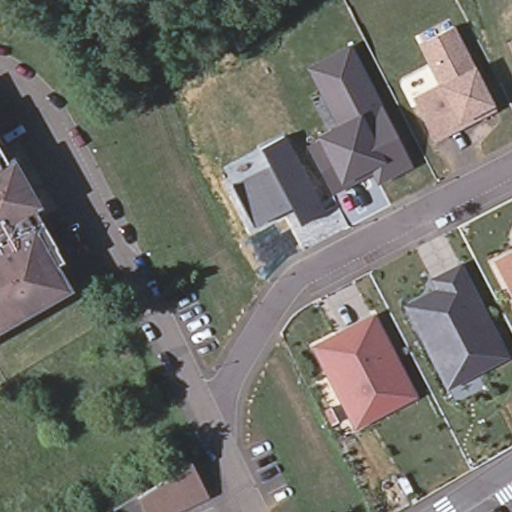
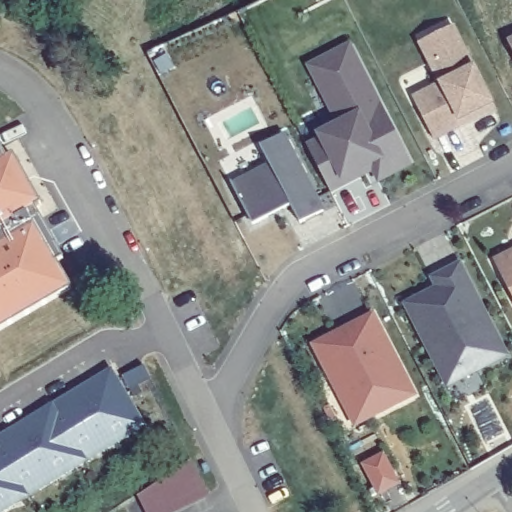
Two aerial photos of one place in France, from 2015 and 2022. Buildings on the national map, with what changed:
unchanged [(462,125),(434,140),(416,105),(412,97),(439,84),(418,43),(426,40),(452,25),(492,103),(495,109),(462,125)]
unchanged [(507,43),(512,41),(512,52),(507,43)]
unchanged [(311,154),(307,147),(321,140),(319,136),(339,125),(342,115),(317,68),(351,51),(407,160),(381,174),(375,162),(356,171),(359,177),(330,192),(311,154)]
unchanged [(232,185),(270,165),(260,146),(283,135),(322,211),(300,224),(291,205),(252,225),(232,185)]
unchanged [(10,153),(32,195),(0,215),(0,152),(3,157),(10,153)]
unchanged [(37,203),(31,207),(59,258),(52,262),(66,288),(0,324),(0,215),(32,195),(37,203)]
unchanged [(494,257),(507,251),(512,248),(512,293),(494,257)]
unchanged [(410,305),(421,299),(427,301),(440,295),(432,279),(460,265),(481,305),(476,308),(482,320),(487,318),(507,355),(460,380),(447,356),(442,360),(434,345),(427,348),(407,311),(410,305)]
unchanged [(347,406),(318,351),(340,340),(345,349),(352,345),(347,336),(378,320),(417,395),(371,420),(357,427),(347,406)]
new [(147,426),(3,512),(0,512),(0,436),(112,368),(147,426)]
unchanged [(207,491),(164,512),(146,512),(137,493),(191,457),(207,491)]

